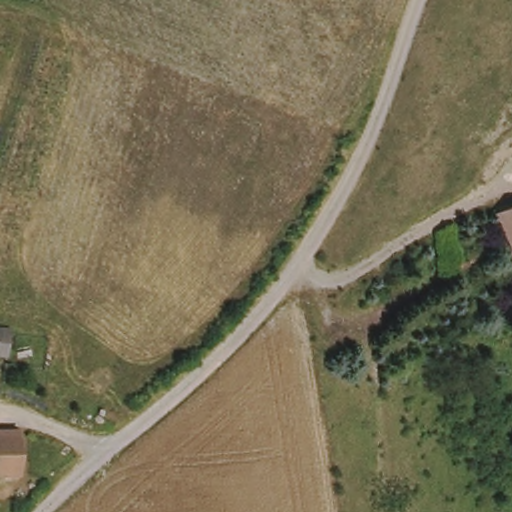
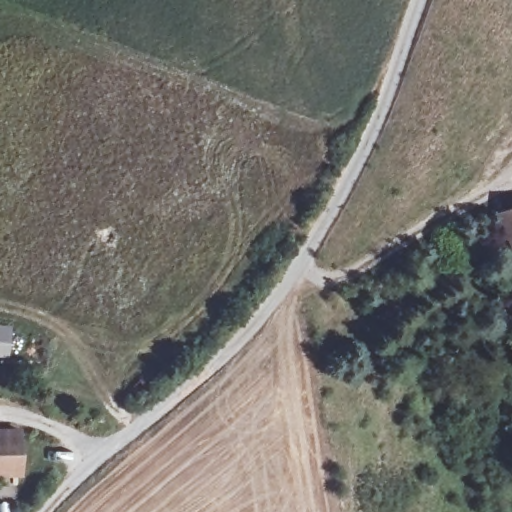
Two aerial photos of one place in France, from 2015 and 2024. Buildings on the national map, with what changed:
unchanged [(510,250),(497,214),(512,207),(512,249),(510,250)]
unchanged [(512,249),(512,255),(510,250),(512,249)]
unchanged [(7,329),(4,354),(0,354),(0,329),(7,329)]
unchanged [(18,431),(19,474),(0,474),(0,431),(18,431)]

